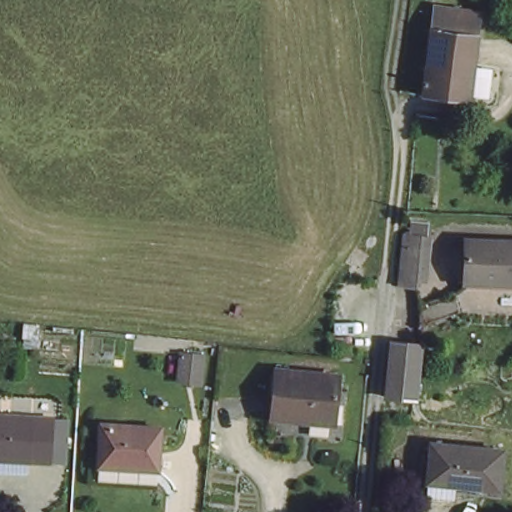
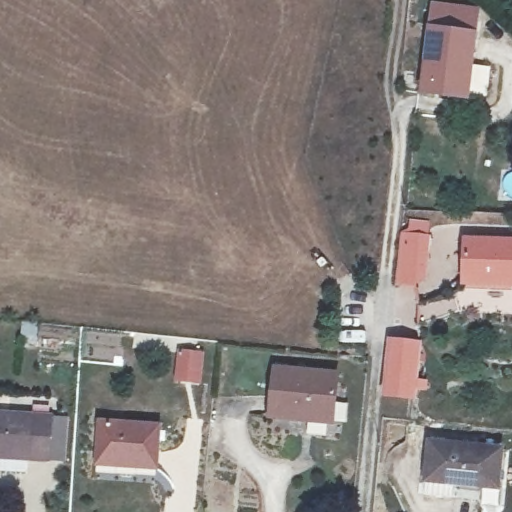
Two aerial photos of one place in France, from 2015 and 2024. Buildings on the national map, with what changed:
unchanged [(476,17),(465,102),(417,97),(427,11),(476,17)]
unchanged [(420,226),(428,227),(423,277),(415,276),(415,282),(404,282),(408,234),(419,235),(420,226)]
unchanged [(512,289),(463,287),(466,243),(512,245),(512,289)]
unchanged [(415,402),(384,398),(391,344),(420,347),(415,402)]
unchanged [(175,377),(178,348),(200,351),(198,380),(175,377)]
unchanged [(338,397),(334,397),(333,425),(276,423),(277,373),(339,376),(338,397)]
unchanged [(55,420),(51,462),(0,456),(0,415),(55,420)]
unchanged [(159,427),(156,469),(102,464),(105,422),(159,427)]
unchanged [(448,497),(421,495),(426,442),(496,448),(491,489),(451,486),(448,497)]

